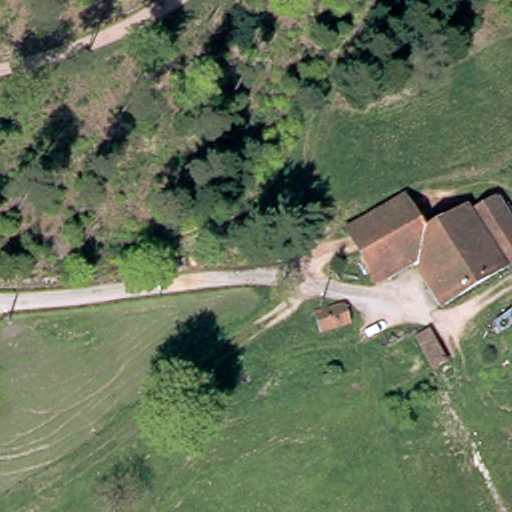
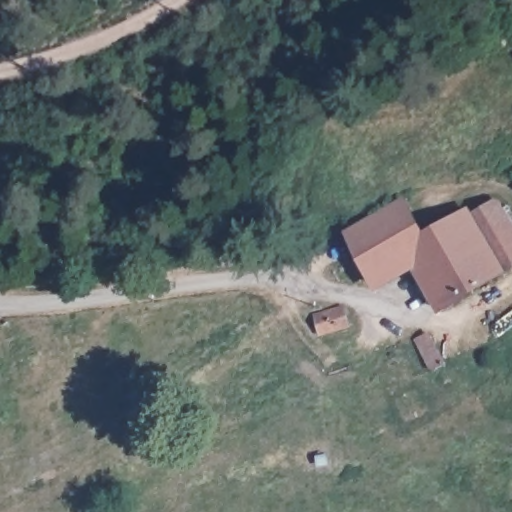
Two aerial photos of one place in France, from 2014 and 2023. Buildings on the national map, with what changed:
unchanged [(349,222),(405,187),(407,190),(418,210),(362,245),(350,225),(349,222)]
unchanged [(490,194),(512,232),(512,256),(500,263),(466,207),(490,194)]
unchanged [(432,305),(404,259),(379,273),(372,263),(362,245),(418,210),(430,230),(466,207),(500,263),(432,305)]
unchanged [(344,310),(349,324),(322,335),(317,320),(344,310)]
unchanged [(435,363),(418,370),(410,345),(409,342),(427,336),(427,339),(435,363)]

